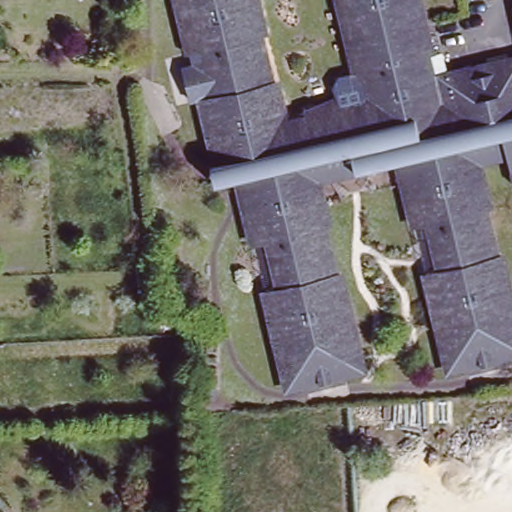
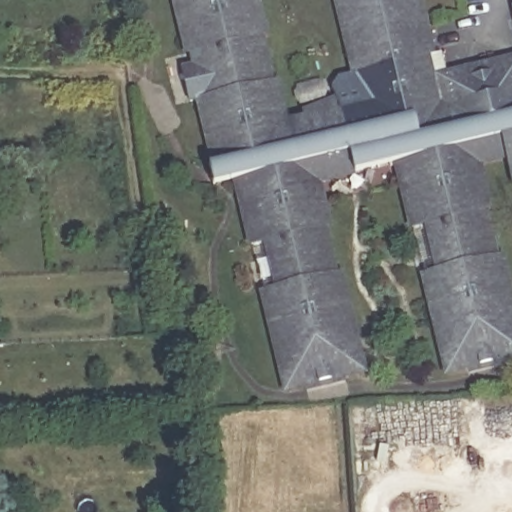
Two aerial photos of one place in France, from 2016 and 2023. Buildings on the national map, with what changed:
unchanged [(188,67),(194,66),(184,24),(178,0),(256,0),(269,55),(286,123),(306,118),(304,111),(339,97),(335,87),(342,75),(356,70),(340,0),(418,0),(424,27),(432,56),(436,75),(512,56),(512,165),(509,152),(480,160),(500,245),(512,295),(512,355),(509,355),(509,360),(472,370),(469,365),(453,369),(430,273),(439,270),(429,225),(419,226),(403,162),(320,181),(348,295),(366,370),(349,374),(350,377),(311,386),(311,384),(294,388),(271,290),(280,288),(269,243),(259,245),(243,180),(225,184),(218,186),(213,168),(221,166),(203,101),(196,102),(188,67)]

